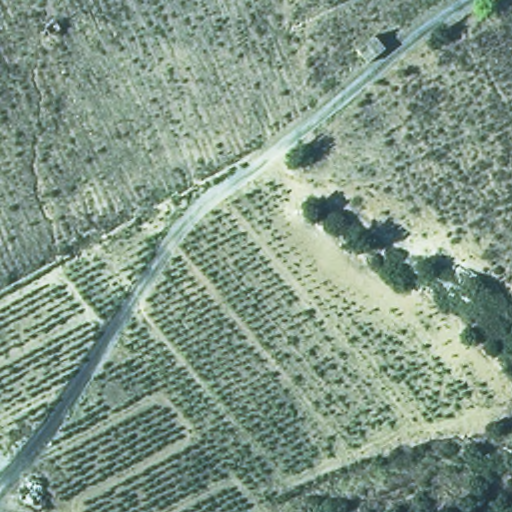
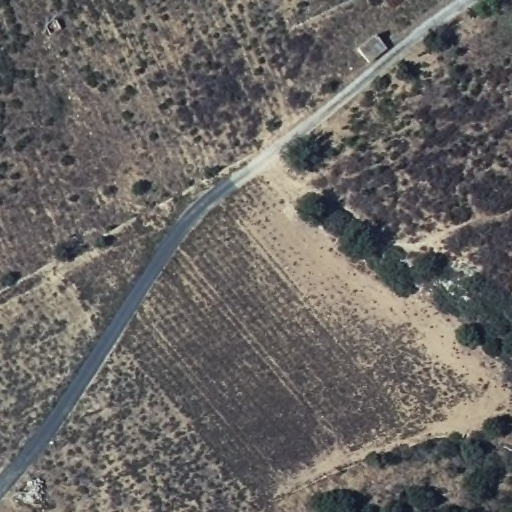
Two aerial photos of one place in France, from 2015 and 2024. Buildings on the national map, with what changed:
unchanged [(370,61),(357,49),(375,32),(386,47),(370,61)]

